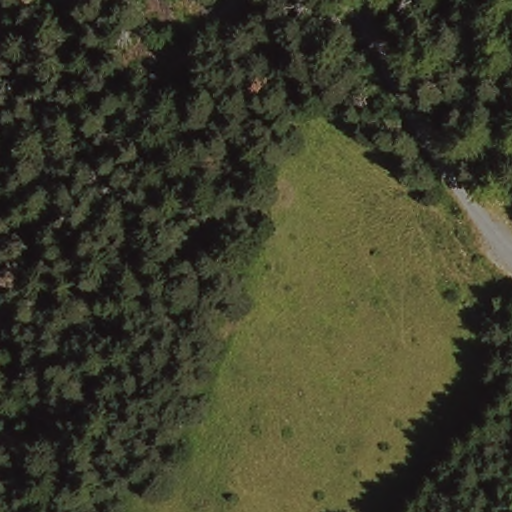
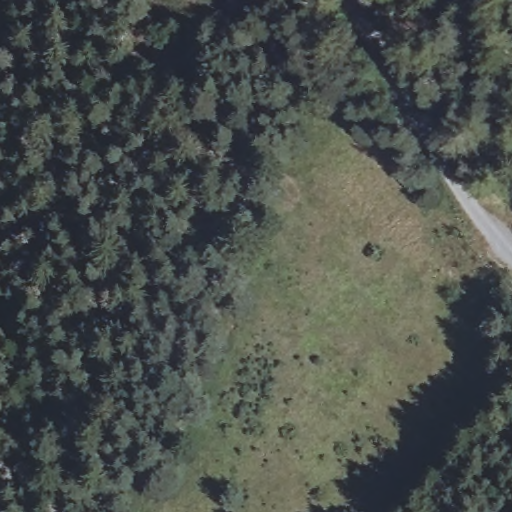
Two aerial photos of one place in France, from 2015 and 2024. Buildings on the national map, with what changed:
[]

